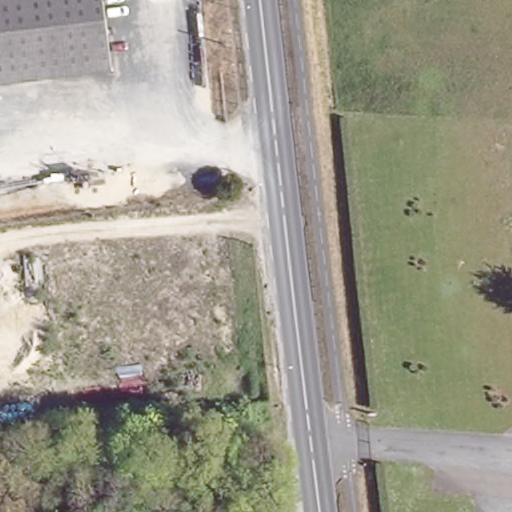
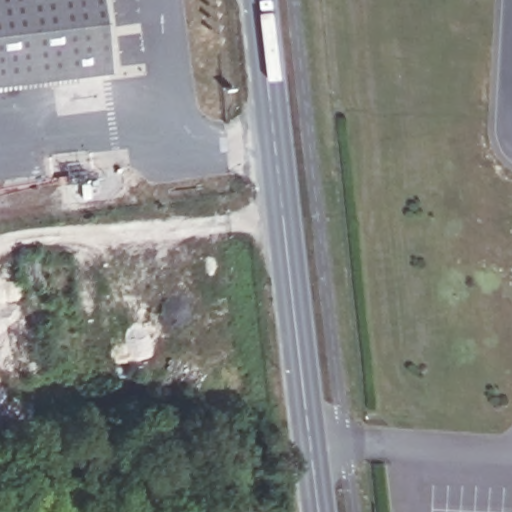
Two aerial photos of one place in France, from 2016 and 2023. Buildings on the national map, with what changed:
unchanged [(114,67),(0,79),(0,0),(106,0),(114,67)]

